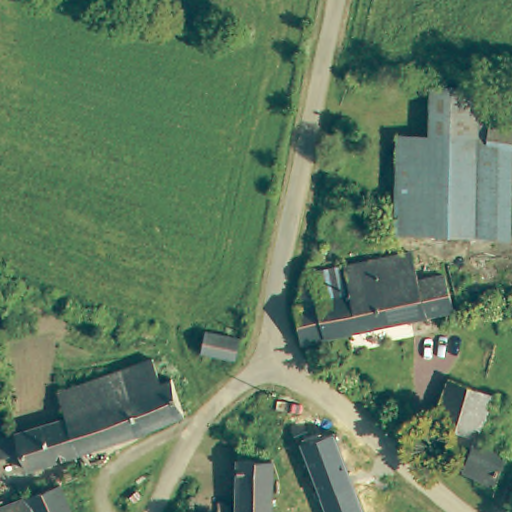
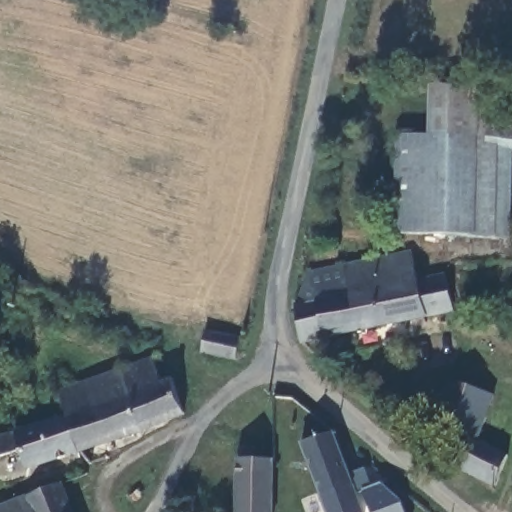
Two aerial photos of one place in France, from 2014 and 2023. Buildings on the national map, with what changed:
unchanged [(397,136),(429,136),(430,87),(471,87),(495,95),(490,138),(500,140),(499,233),(437,233),(395,233),(397,136)]
unchanged [(490,138),(495,95),(512,97),(512,141),(500,140),(490,138)]
unchanged [(305,276),(408,256),(415,285),(442,278),(451,314),(298,347),(291,309),(305,276)]
unchanged [(203,330),(239,337),(234,360),(199,352),(203,330)]
unchanged [(150,358),(158,382),(170,378),(183,414),(86,445),(76,408),(69,410),(61,385),(150,358)]
unchanged [(435,425),(452,381),(493,399),(475,443),(456,435),(435,425)]
unchanged [(24,447),(0,454),(0,431),(18,426),(69,410),(76,408),(86,445),(31,463),(24,447)]
unchanged [(355,485),(320,497),(297,445),(333,431),(355,485)]
unchanged [(456,435),(475,443),(510,460),(498,491),(444,467),(456,435)]
unchanged [(253,462),(270,462),(275,512),(239,512),(234,451),(253,450),(253,462)]
new [(397,501),(401,512),(366,512),(359,491),(378,484),(397,501)]
unchanged [(366,512),(325,512),(320,497),(355,485),(366,512)]
unchanged [(71,512),(0,512),(0,507),(60,486),(71,512)]

